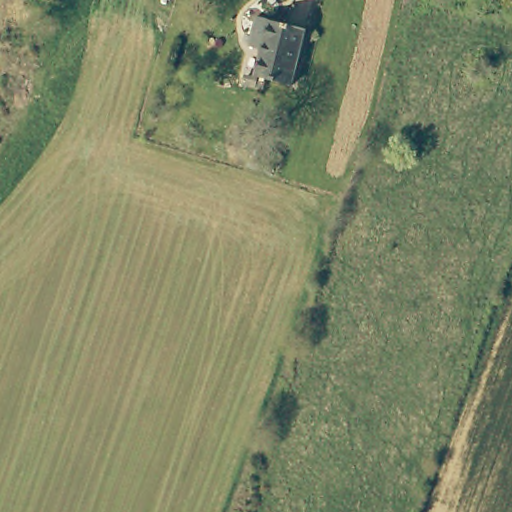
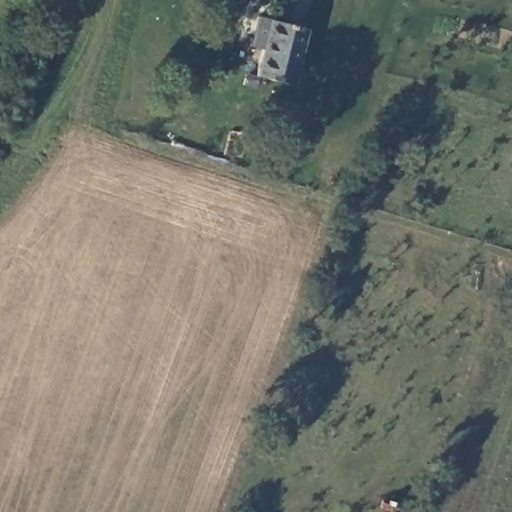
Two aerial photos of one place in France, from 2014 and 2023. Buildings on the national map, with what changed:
unchanged [(310,32),(292,85),(255,72),(266,44),(256,40),(265,16),(310,32)]

